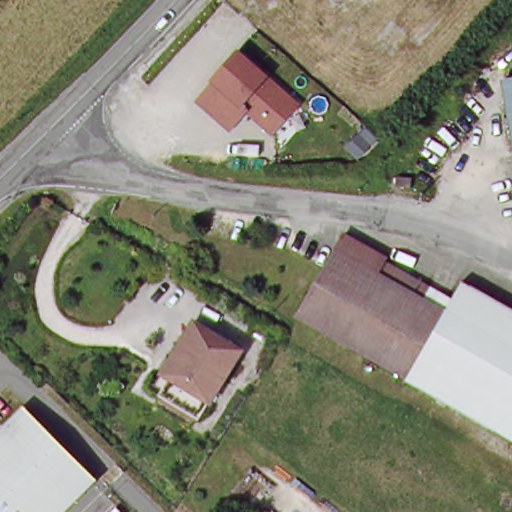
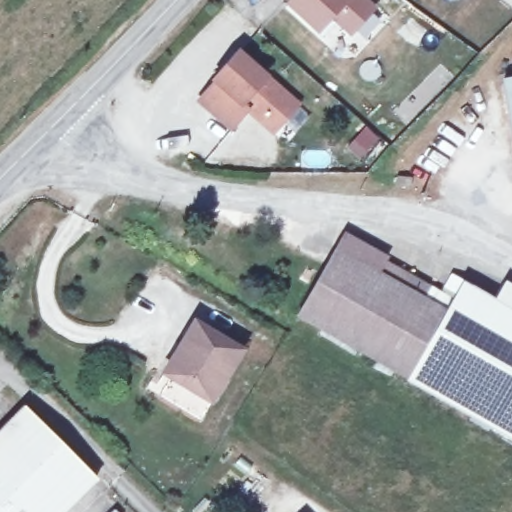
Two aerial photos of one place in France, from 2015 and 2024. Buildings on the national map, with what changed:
new [(330,21),(317,35),(284,5),(288,0),(368,0),(376,7),(350,38),(330,21)]
unchanged [(297,100),(271,131),(246,112),(229,128),(196,100),(237,50),(297,100)]
unchanged [(512,80),(512,135),(503,81),(512,80)]
unchanged [(407,183),(397,182),(393,180),(392,180),(392,170),(407,170),(407,183)]
unchanged [(512,310),(512,436),(295,318),(330,252),(336,240),(380,261),(450,299),(459,281),(512,310)]
unchanged [(239,350),(202,420),(147,389),(156,372),(162,375),(190,323),(239,350)]
unchanged [(100,478),(67,512),(0,512),(0,431),(26,405),(100,478)]

